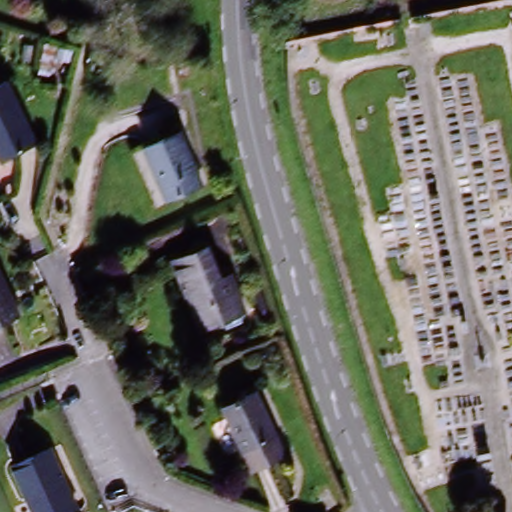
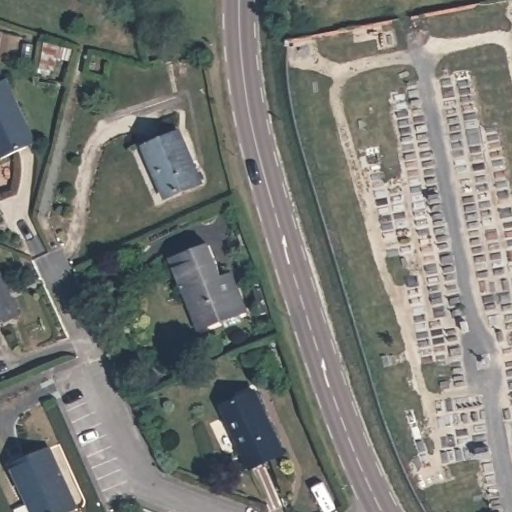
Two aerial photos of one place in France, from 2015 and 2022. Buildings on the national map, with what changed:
unchanged [(11,81),(40,146),(4,162),(0,152),(0,86),(11,81)]
unchanged [(178,135),(200,189),(167,202),(146,149),(178,135)]
unchanged [(243,313),(204,330),(190,295),(184,297),(171,263),(205,249),(220,282),(223,281),(229,295),(235,292),(243,313)]
unchanged [(20,322),(0,331),(0,274),(20,322)]
unchanged [(248,474),(220,412),(256,393),(291,461),(248,474)]
unchanged [(30,512),(11,466),(51,450),(77,511),(75,512),(30,512)]

